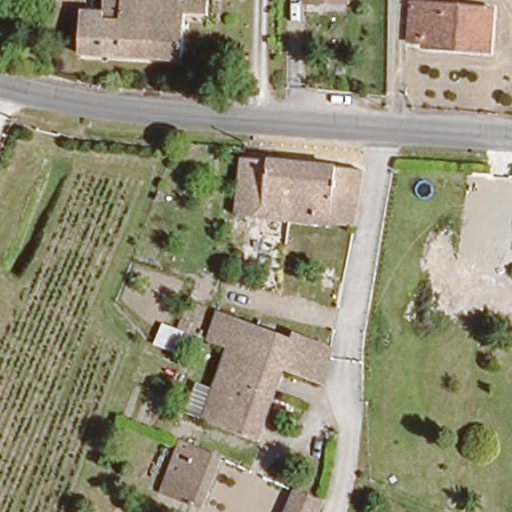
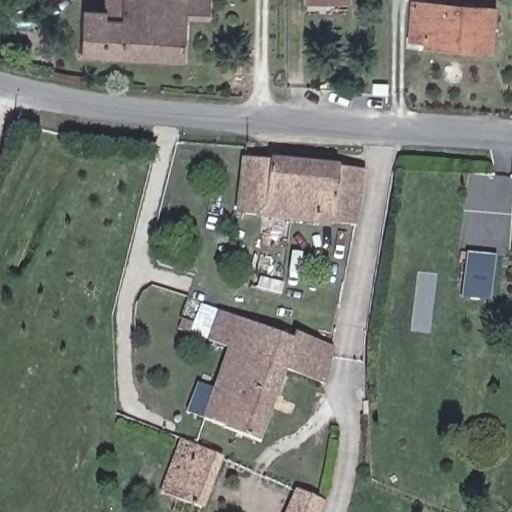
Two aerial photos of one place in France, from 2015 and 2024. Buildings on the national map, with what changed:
unchanged [(99,0),(208,0),(208,1),(203,1),(203,16),(179,16),(178,61),(75,55),(78,12),(99,12),(99,0)]
unchanged [(409,6),(490,10),(488,53),(419,50),(421,34),(408,34),(409,6)]
unchanged [(229,214),(239,150),(363,167),(354,230),(229,214)]
new [(491,302),(461,298),(466,253),(496,257),(491,302)]
unchanged [(254,353),(227,343),(182,328),(188,313),(214,322),(218,315),(284,341),(288,333),(322,347),(312,373),(288,365),(254,353)]
unchanged [(170,336),(155,332),(158,320),(174,326),(170,336)]
unchanged [(254,353),(288,365),(261,441),(244,435),(203,422),(227,343),(254,353)]
unchanged [(193,506),(170,497),(189,452),(175,443),(178,436),(216,455),(193,506)]
unchanged [(321,500),(316,512),(285,512),(299,488),(321,500)]

